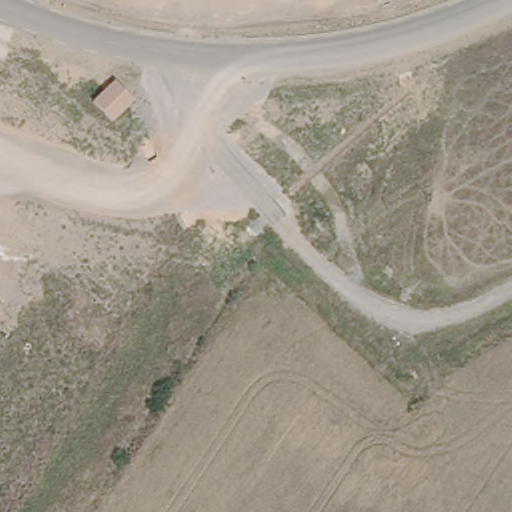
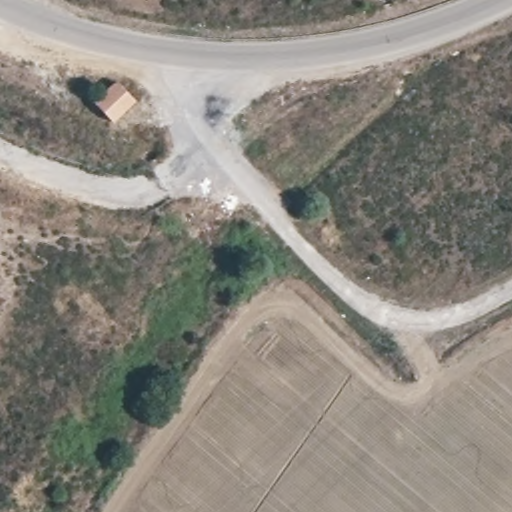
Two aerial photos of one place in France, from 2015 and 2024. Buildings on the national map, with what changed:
unchanged [(136,104),(113,124),(94,105),(116,85),(136,104)]

